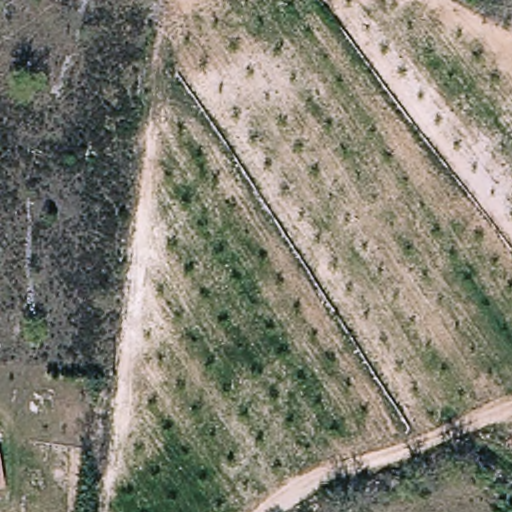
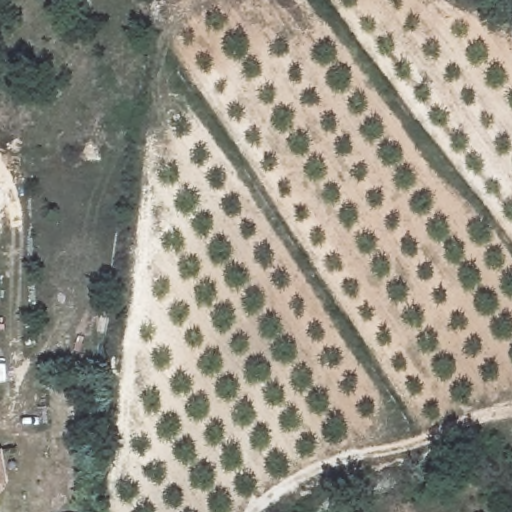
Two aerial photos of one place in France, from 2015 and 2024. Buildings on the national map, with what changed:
unchanged [(5,484),(0,484),(0,458),(5,484)]

